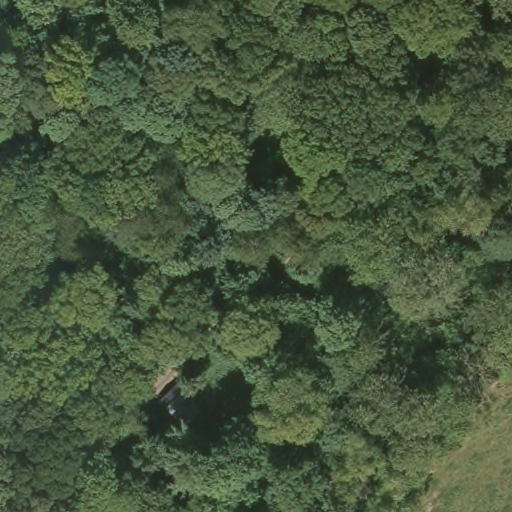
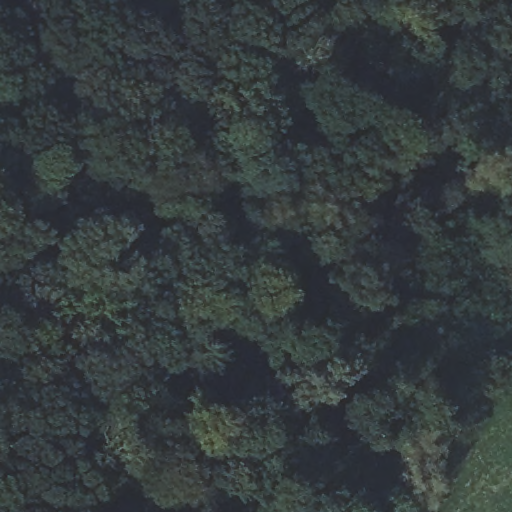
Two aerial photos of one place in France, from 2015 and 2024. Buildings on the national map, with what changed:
[]

